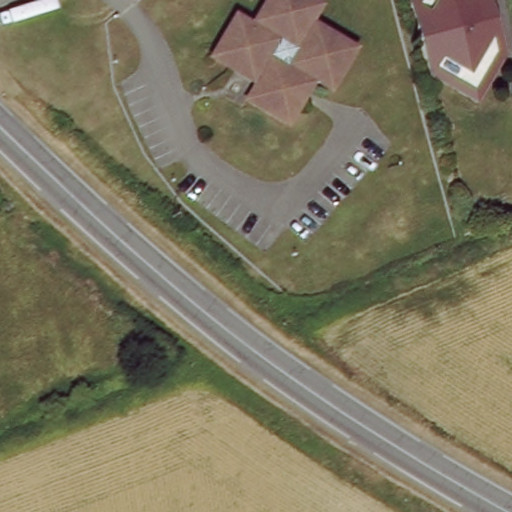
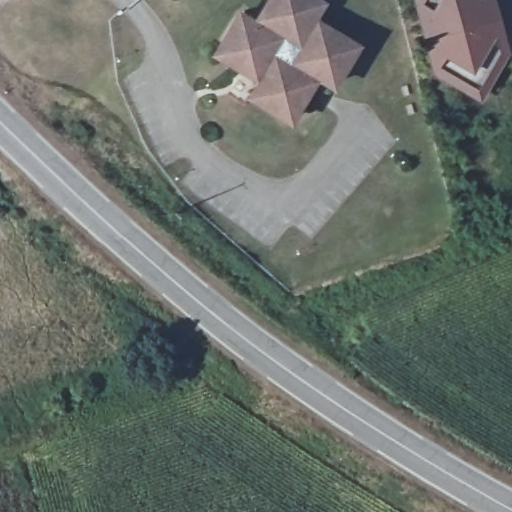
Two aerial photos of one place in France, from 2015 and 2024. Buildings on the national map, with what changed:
unchanged [(356,39),(332,76),(316,67),(288,112),(249,88),(261,68),(215,39),(239,2),(258,14),(267,0),(324,0),(317,12),(356,39)]
unchanged [(417,0),(490,0),(504,50),(478,95),(435,70),(417,0)]

